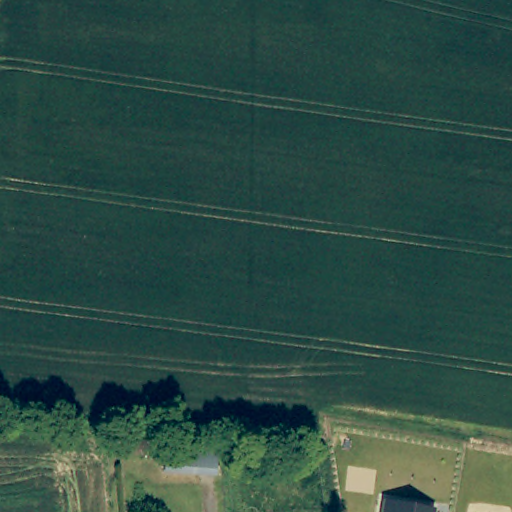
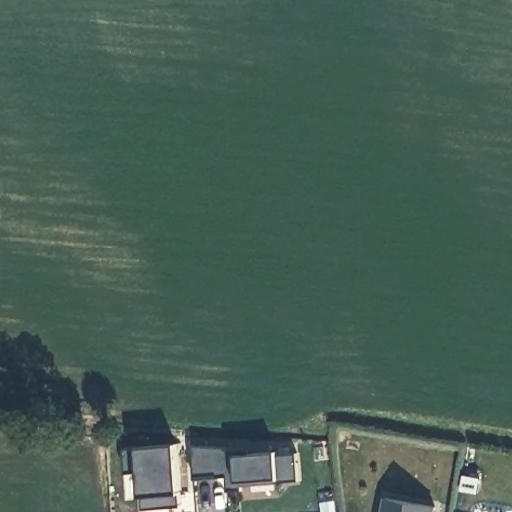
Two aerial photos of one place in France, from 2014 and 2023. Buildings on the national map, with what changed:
new [(145,509),(143,494),(141,473),(128,473),(126,448),(141,447),(177,444),(181,494),(182,505),(145,509)]
new [(279,485),(243,487),(242,491),(229,492),(227,477),(196,479),(194,447),(243,456),(277,453),(278,459),(296,454),(300,480),(279,485)]
unchanged [(432,512),(381,512),(383,500),(433,509),(432,512)]

